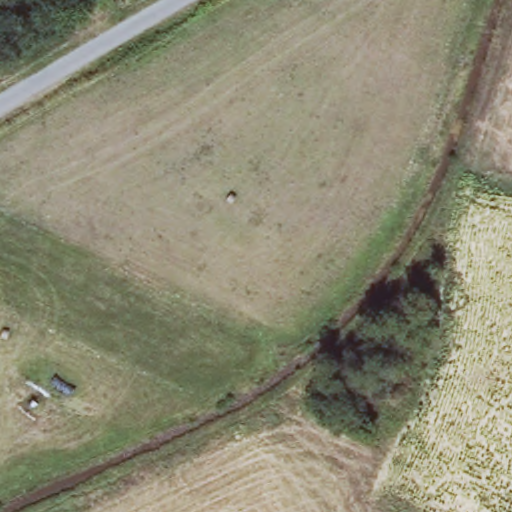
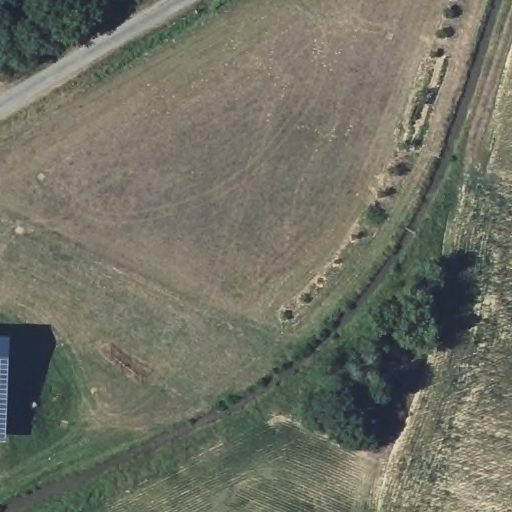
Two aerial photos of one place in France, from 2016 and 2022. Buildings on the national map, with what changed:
new [(0,444),(0,340),(10,341),(7,444),(0,444)]

